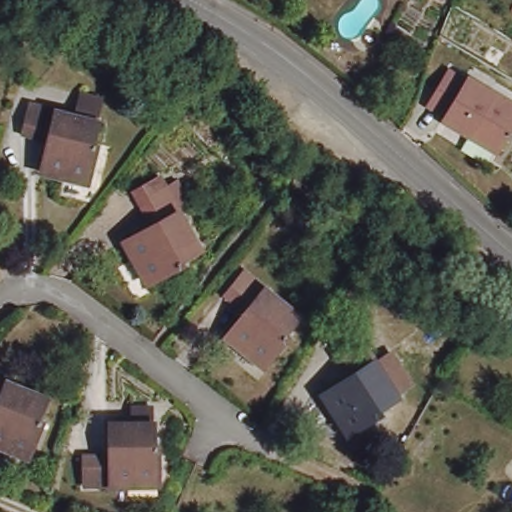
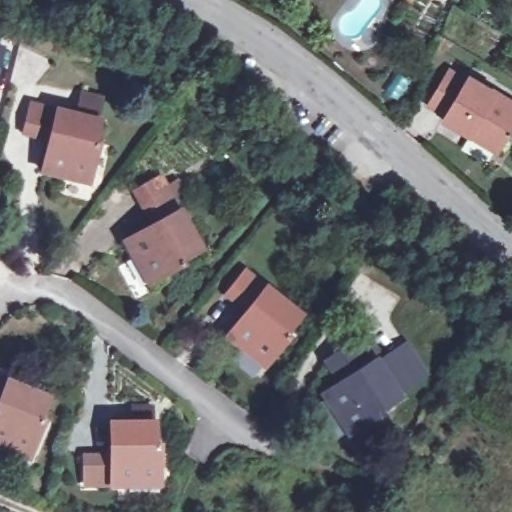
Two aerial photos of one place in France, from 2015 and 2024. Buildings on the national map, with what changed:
unchanged [(449,125),(451,121),(434,110),(454,76),(472,86),(474,84),(512,107),(512,136),(500,156),(449,125)]
unchanged [(90,92),(110,97),(104,120),(107,120),(102,142),(107,144),(98,182),(51,171),(58,140),(33,134),(40,104),(85,115),(90,92)]
unchanged [(180,258),(183,263),(148,282),(124,240),(153,224),(141,201),(168,187),(178,181),(189,204),(179,209),(201,247),(180,258)]
unchanged [(299,319),(284,336),(289,340),(264,370),(226,340),(246,315),(226,299),(244,275),(299,319)]
unchanged [(391,357),(409,387),(396,396),(399,401),(380,413),(382,416),(349,437),(323,398),(350,380),(336,358),(361,342),(377,367),(391,357)]
unchanged [(46,390),(38,411),(43,413),(28,450),(0,440),(0,373),(46,390)]
unchanged [(153,443),(158,443),(158,483),(85,485),(84,455),(111,454),(111,421),(153,420),(153,443)]

